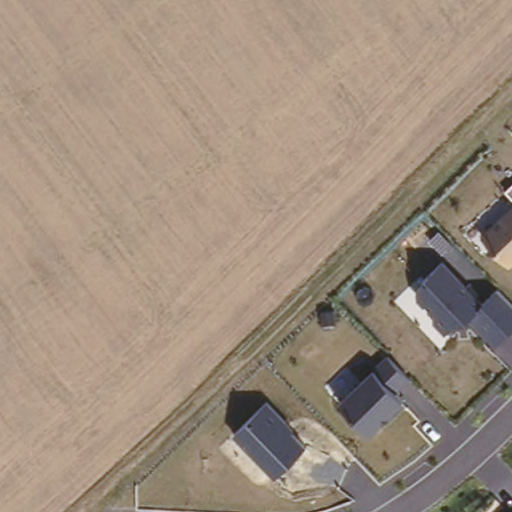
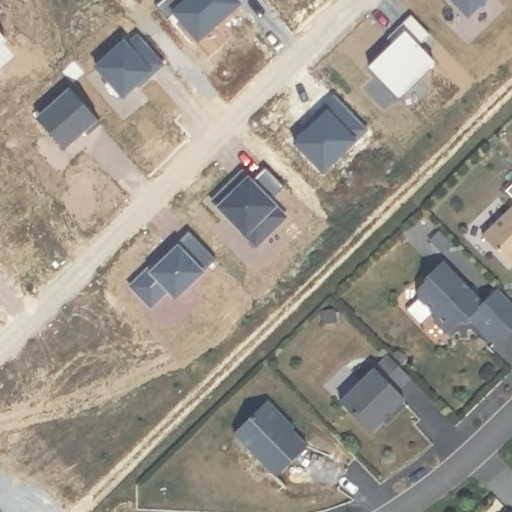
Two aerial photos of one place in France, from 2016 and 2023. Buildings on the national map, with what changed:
new [(451,0),(484,0),(467,16),(451,0)]
new [(0,13),(0,12),(1,13),(0,13)]
new [(392,44),(387,39),(410,16),(429,36),(418,46),(433,62),(397,97),(368,67),(392,44)]
new [(122,43),(126,47),(138,35),(164,64),(151,76),(149,73),(122,98),(95,68),(122,43)]
new [(0,45),(0,36),(5,41),(0,45)]
new [(70,90),(100,124),(87,135),(84,132),(62,150),(36,121),(70,90)]
new [(312,126),(308,121),(335,96),(367,130),(322,173),(293,144),(312,126)]
new [(242,173),(247,179),(250,182),(265,168),(284,188),(270,202),(285,217),(256,247),(212,202),(229,185),(242,173)]
unchanged [(512,264),(482,233),(512,206),(512,264)]
new [(159,260),(162,263),(177,248),(175,246),(189,232),(216,260),(175,300),(167,292),(151,309),(130,288),(148,270),(159,260)]
unchanged [(484,301),(497,289),(512,304),(512,327),(494,343),(467,313),(445,331),(435,322),(436,314),(412,289),(445,261),(484,301)]
unchanged [(411,376),(395,391),(403,400),(369,433),(339,401),(372,367),(387,354),(411,376)]
unchanged [(297,425),(294,430),(307,443),(275,475),(234,433),(270,397),(297,425)]
unchanged [(511,509),(512,511),(512,512),(507,512),(511,509)]

